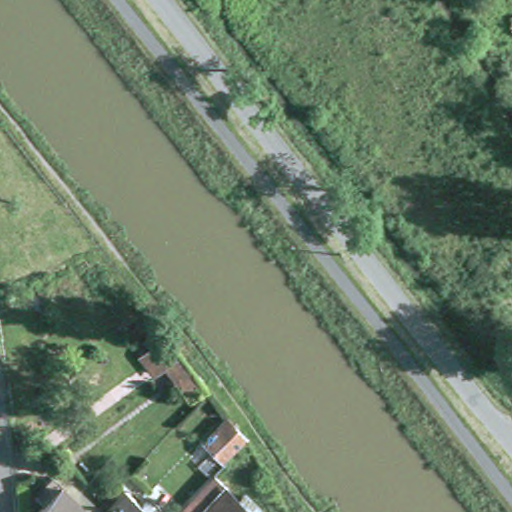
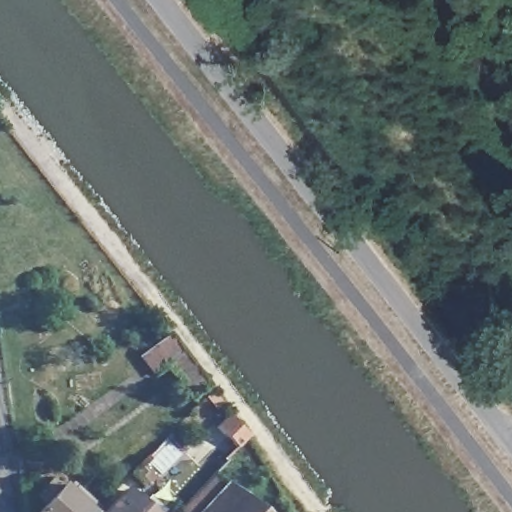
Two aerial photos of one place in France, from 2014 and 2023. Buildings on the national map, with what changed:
unchanged [(63,276),(50,286),(43,279),(57,269),(63,276)]
unchanged [(130,321),(115,333),(102,319),(120,306),(130,321)]
unchanged [(185,392),(168,369),(143,390),(123,364),(165,331),(201,379),(185,392)]
unchanged [(206,442),(230,417),(248,437),(225,460),(206,442)]
unchanged [(216,476),(256,512),(181,512),(208,484),(216,476)]
unchanged [(34,499),(51,480),(86,512),(41,512),(45,508),(34,499)]
unchanged [(141,508),(145,504),(153,512),(106,512),(124,493),(141,508)]

